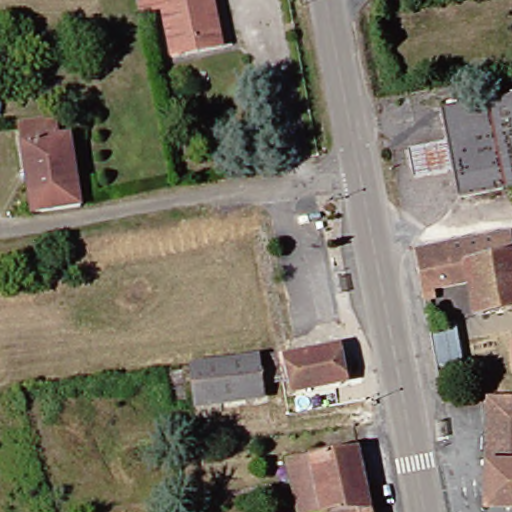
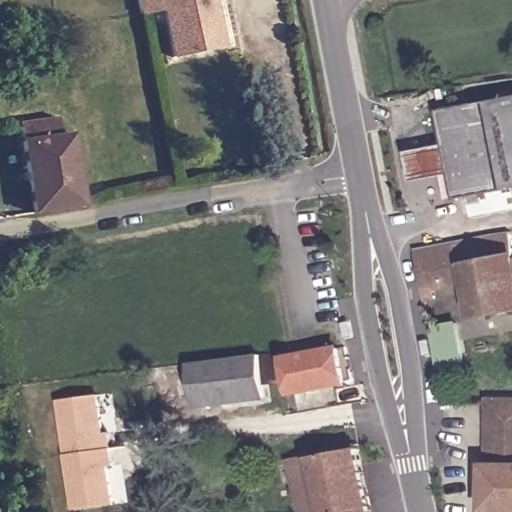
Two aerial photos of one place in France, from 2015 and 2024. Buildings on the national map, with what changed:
unchanged [(140,1),(140,0),(146,0),(140,1)]
unchanged [(205,52),(178,59),(166,0),(219,0),(227,37),(229,48),(205,52)]
unchanged [(463,193),(446,105),(512,91),(512,183),(463,193)]
unchanged [(35,217),(20,123),(63,117),(64,135),(77,133),(89,208),(35,217)]
unchanged [(446,139),(452,167),(414,173),(409,146),(446,139)]
unchanged [(482,322),(476,290),(425,299),(416,256),(506,241),(512,240),(512,316),(482,322)]
unchanged [(291,386),(269,387),(270,401),(203,410),(195,366),(285,353),(291,386)]
unchanged [(351,387),(298,396),(293,362),(345,353),(351,387)]
new [(101,394),(105,431),(110,431),(115,466),(110,467),(115,503),(74,508),(60,399),(101,394)]
unchanged [(491,406),(512,405),(512,512),(492,512),(492,509),(492,472),(491,406)]
unchanged [(379,512),(329,512),(318,462),(367,452),(379,512)]

